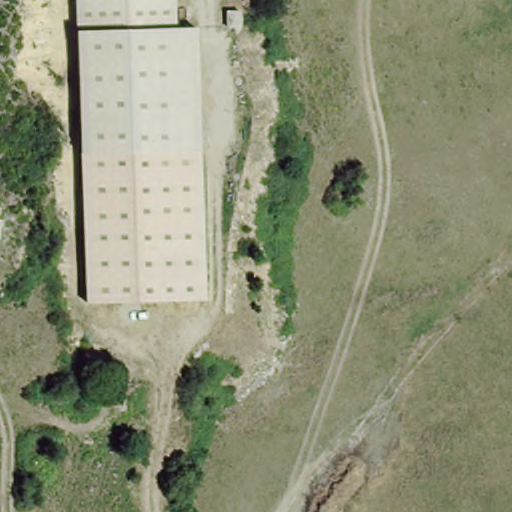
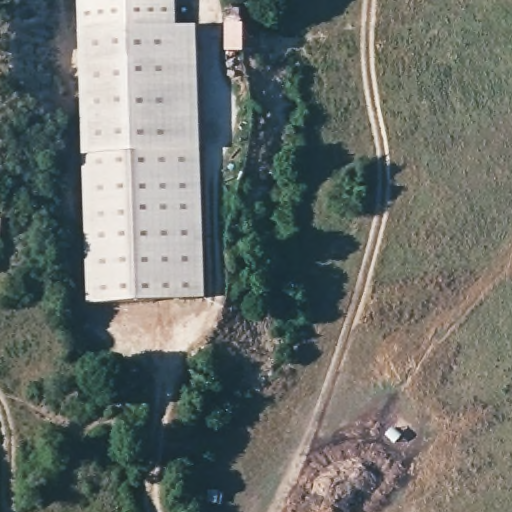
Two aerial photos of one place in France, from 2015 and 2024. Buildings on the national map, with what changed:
unchanged [(77,0),(176,0),(177,28),(195,26),(203,301),(87,303),(78,29),(77,0)]

